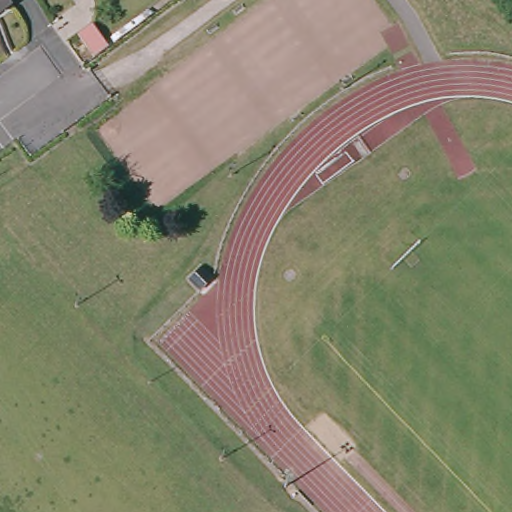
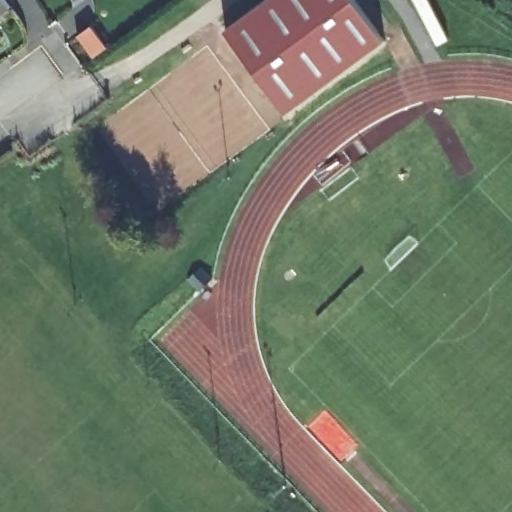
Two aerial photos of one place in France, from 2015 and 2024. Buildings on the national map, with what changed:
unchanged [(0,0),(5,6),(0,10),(0,0)]
new [(287,114),(226,30),(267,0),(355,0),(386,41),(287,114)]
unchanged [(76,74),(60,50),(74,40),(90,63),(76,74)]

